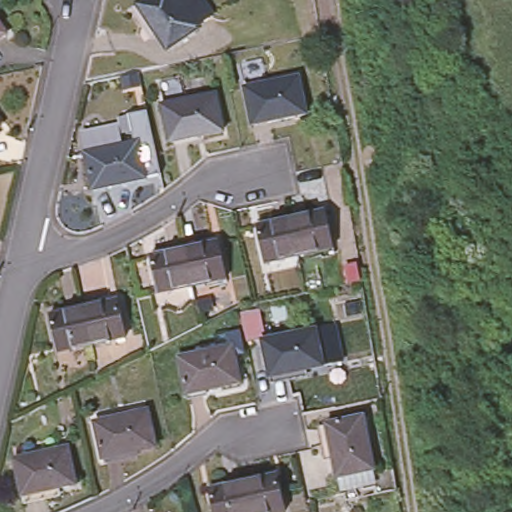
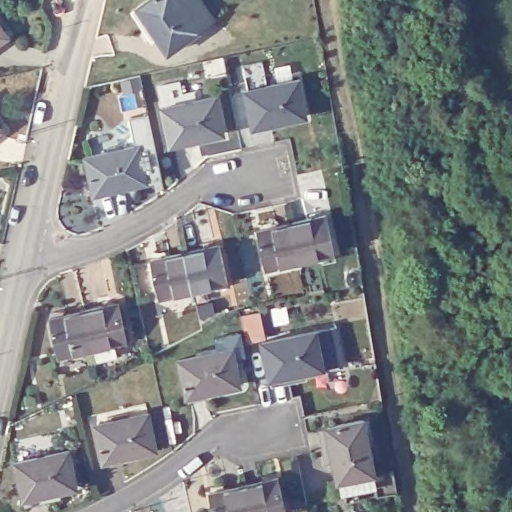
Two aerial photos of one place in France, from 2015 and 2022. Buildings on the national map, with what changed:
unchanged [(129,5),(136,0),(191,0),(202,17),(187,26),(188,30),(157,50),(129,5)]
unchanged [(0,27),(0,23),(2,25),(0,27)]
unchanged [(292,72),(299,107),(247,118),(239,83),(292,72)]
unchanged [(217,129),(165,142),(156,106),(160,105),(155,83),(174,79),(178,101),(210,93),(217,129)]
unchanged [(130,178),(130,181),(79,191),(71,154),(119,144),(114,115),(131,112),(145,175),(130,178)]
unchanged [(291,213),(325,207),(332,243),(299,250),(291,213)]
unchanged [(291,213),(299,250),(264,257),(256,221),(291,213)]
unchanged [(184,244),(217,237),(226,273),(191,281),(184,244)]
unchanged [(149,252),(184,244),(191,281),(158,288),(149,252)]
unchanged [(117,296),(124,332),(92,339),(83,303),(117,296)]
unchanged [(50,310),(83,303),(92,339),(57,347),(50,310)]
unchanged [(256,336),(309,326),(317,362),(265,372),(256,336)]
unchanged [(172,353),(227,342),(234,379),(181,390),(172,353)]
unchanged [(91,417),(143,405),(150,442),(97,453),(91,417)]
unchanged [(322,426),(360,417),(370,465),(333,473),(322,426)]
unchanged [(10,459),(62,446),(69,483),(18,495),(10,459)]
unchanged [(239,478),(273,471),(280,507),(258,512),(246,512),(239,478)]
unchanged [(204,484),(239,478),(246,512),(210,512),(204,484)]

